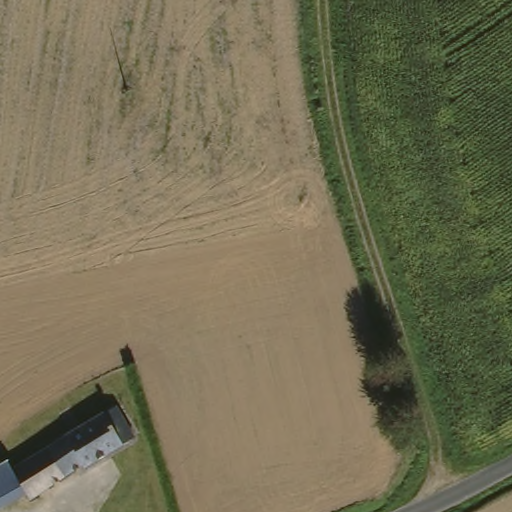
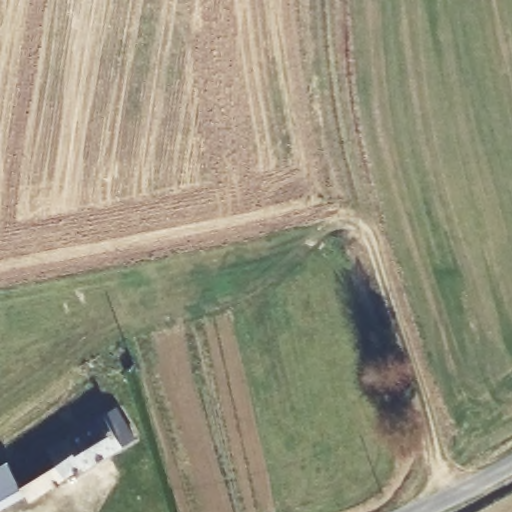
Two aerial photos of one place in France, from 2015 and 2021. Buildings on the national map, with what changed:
unchanged [(38,492),(20,460),(125,401),(144,433),(38,492)]
unchanged [(28,492),(0,507),(0,464),(10,459),(28,492)]

